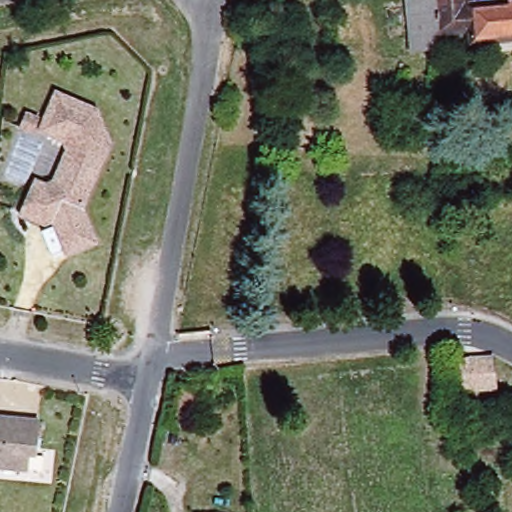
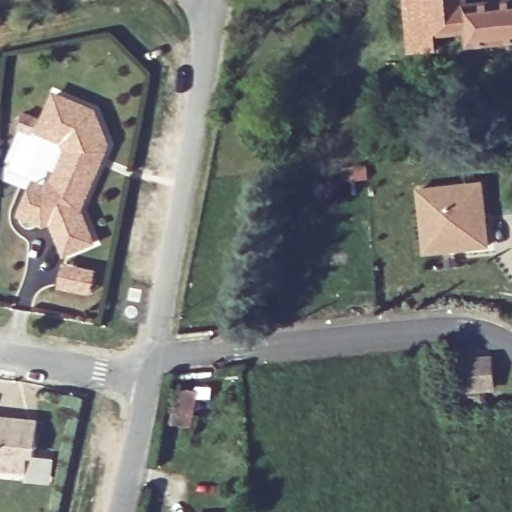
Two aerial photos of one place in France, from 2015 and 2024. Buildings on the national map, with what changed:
unchanged [(497,0),(512,0),(512,42),(464,46),(463,35),(434,37),(434,49),(406,51),(402,0),(463,0),(463,3),(497,0)]
unchanged [(41,185),(50,189),(58,185),(72,152),(69,143),(45,133),(60,96),(100,113),(113,146),(109,155),(103,170),(86,212),(99,244),(71,255),(58,223),(50,226),(36,221),(28,217),(41,185)]
new [(480,183),(486,245),(454,249),(451,229),(422,232),(417,189),(480,183)]
unchanged [(492,357),(494,386),(459,389),(457,359),(492,357)]
unchanged [(39,423),(35,458),(29,458),(27,473),(0,471),(0,420),(7,420),(39,423)]

